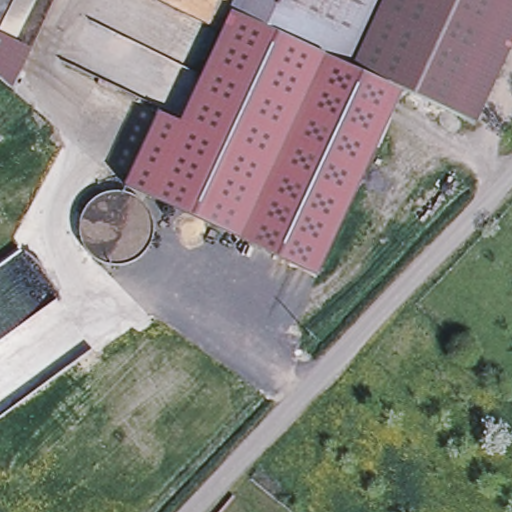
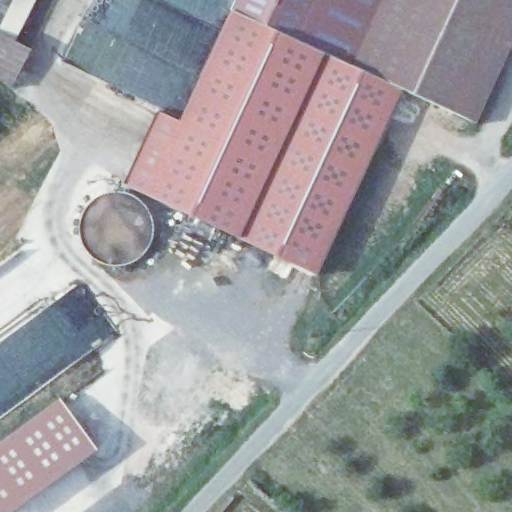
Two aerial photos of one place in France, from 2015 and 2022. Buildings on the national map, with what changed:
unchanged [(5,29),(0,27),(0,0),(19,0),(5,29)]
unchanged [(12,33),(5,29),(19,0),(27,0),(12,33)]
unchanged [(230,12),(229,11),(234,0),(384,0),(352,68),(230,12)]
unchanged [(384,0),(512,0),(512,51),(476,126),(403,92),(401,91),(352,68),(384,0)]
unchanged [(317,276),(124,186),(157,112),(180,123),(230,12),(352,68),(401,91),(403,92),(317,276)]
unchanged [(20,85),(0,69),(0,30),(39,48),(20,85)]
new [(97,451),(14,512),(0,512),(0,442),(60,399),(97,451)]

